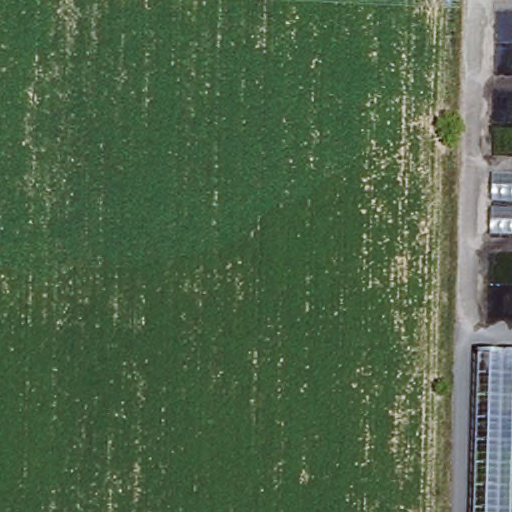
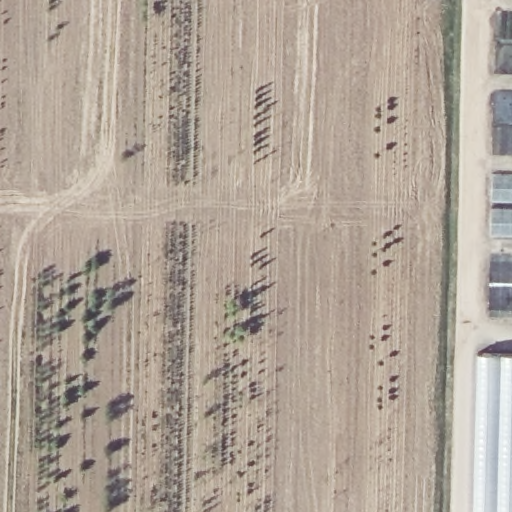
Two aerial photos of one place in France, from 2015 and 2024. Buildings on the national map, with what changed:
unchanged [(512,232),(491,232),(492,172),(512,172),(512,232)]
unchanged [(512,354),(512,512),(475,512),(478,352),(512,354)]

